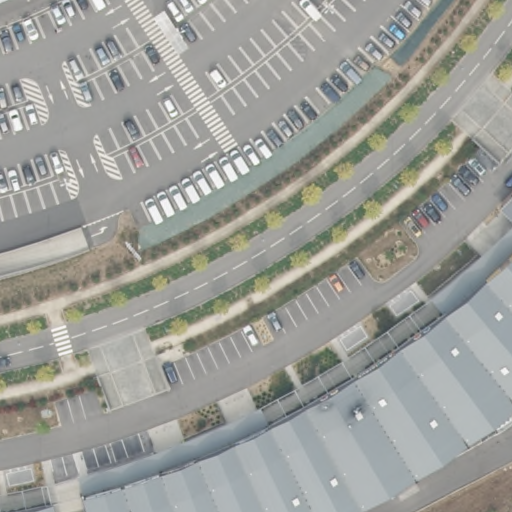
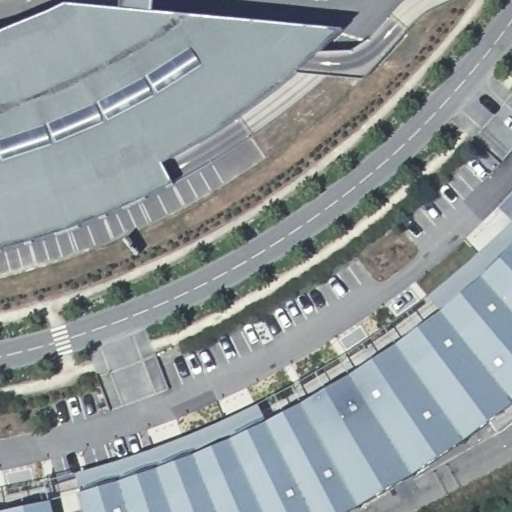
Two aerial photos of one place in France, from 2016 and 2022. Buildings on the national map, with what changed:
new [(307,62),(280,85),(250,108),(212,135),(161,163),(173,185),(119,210),(59,233),(0,250),(0,33),(65,5),(119,10),(120,0),(154,0),(152,12),(342,29),(307,62)]
demolished [(1,30),(77,227),(84,247),(0,271),(0,30),(1,30)]
unchanged [(113,464),(256,402),(263,421),(319,393),(434,313),(424,298),(511,222),(498,208),(512,193),(512,404),(474,439),(349,512),(82,512),(69,463),(108,449),(113,464)]
unchanged [(45,483),(53,512),(0,512),(0,490),(45,483)]

